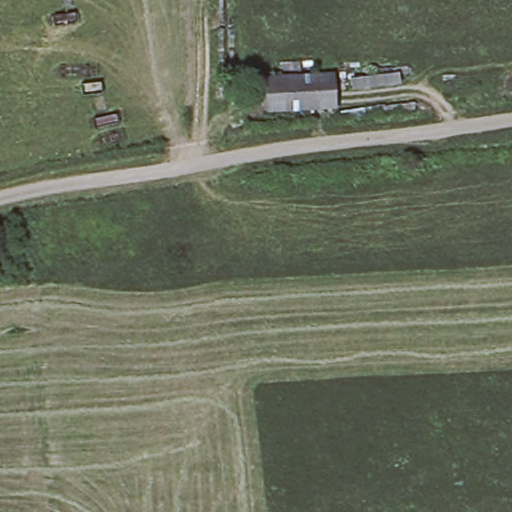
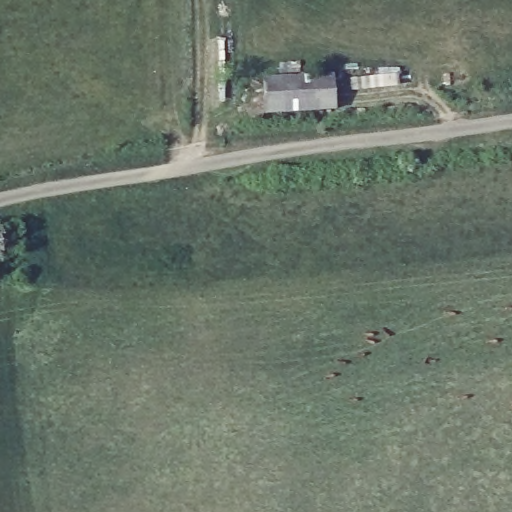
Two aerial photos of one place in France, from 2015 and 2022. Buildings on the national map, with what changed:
unchanged [(334,72),(336,108),(265,111),(263,77),(334,72)]

